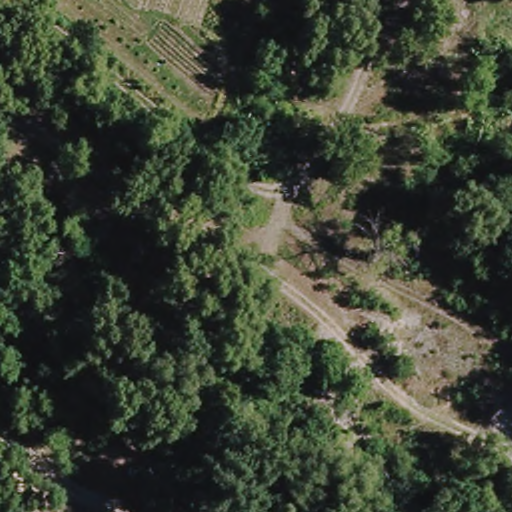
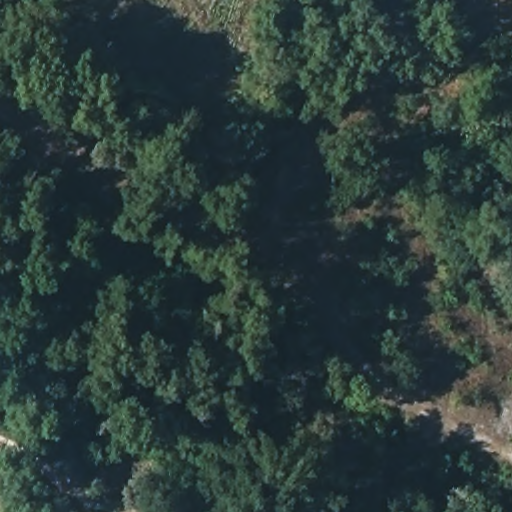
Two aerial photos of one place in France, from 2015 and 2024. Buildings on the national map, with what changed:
[]

